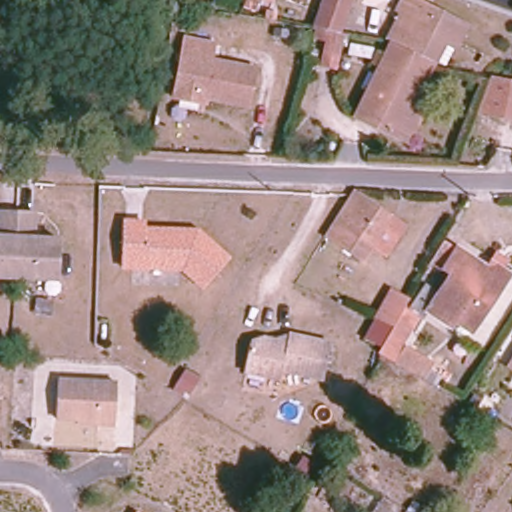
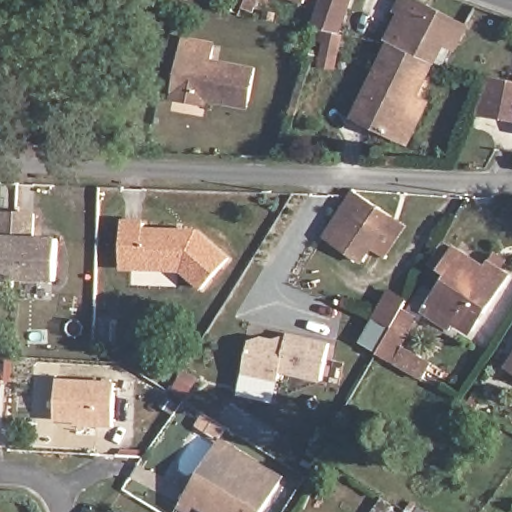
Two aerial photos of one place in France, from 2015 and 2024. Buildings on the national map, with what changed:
unchanged [(305,5),(292,0),(307,0),(305,5)]
unchanged [(335,76),(320,74),(327,39),(310,36),(324,0),(352,0),(336,41),(342,42),(335,76)]
unchanged [(447,42),(436,63),(396,42),(392,40),(408,10),(401,6),(405,0),(421,0),(471,25),(461,42),(458,48),(447,42)]
unchanged [(197,103),(172,98),(183,38),(213,44),(209,60),(254,68),(247,107),(204,99),(197,97),(197,103)]
unchanged [(408,143),(396,137),(356,115),(381,69),(396,42),(436,63),(418,97),(429,104),(408,143)]
unchanged [(504,120),(479,111),(491,78),(512,82),(512,124),(504,120)]
unchanged [(390,216),(356,266),(321,243),(354,193),(390,216)]
unchanged [(0,211),(14,211),(10,276),(0,276),(0,211)]
unchanged [(32,236),(40,236),(70,237),(69,278),(10,276),(14,211),(34,211),(32,236)]
unchanged [(149,226),(203,229),(230,256),(204,284),(187,267),(126,263),(126,220),(150,220),(149,226)]
unchanged [(454,323),(449,327),(425,313),(447,274),(443,272),(457,244),(487,263),(491,257),(512,272),(512,273),(472,334),(454,323)]
demolished [(348,278),(336,298),(311,287),(323,265),(348,278)]
unchanged [(374,353),(377,347),(361,338),(386,290),(404,299),(399,308),(416,317),(400,345),(432,362),(423,379),(392,363),(374,353)]
unchanged [(328,344),(320,381),(279,373),(277,381),(240,373),(247,344),(262,340),(284,344),(285,335),(328,344)]
unchanged [(501,366),(512,349),(512,373),(501,366)]
unchanged [(74,418),(54,417),(55,378),(114,380),(112,423),(94,423),(74,422),(74,418)]
new [(185,512),(179,508),(223,439),(284,477),(263,512),(185,512)]
unchanged [(399,512),(374,512),(382,497),(399,512)]
unchanged [(137,512),(136,512),(136,511),(137,512)]

